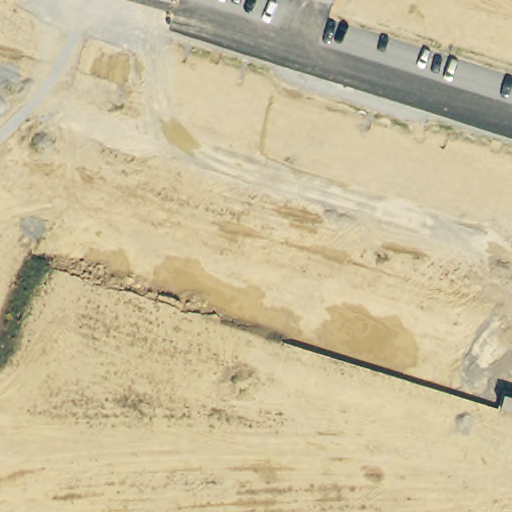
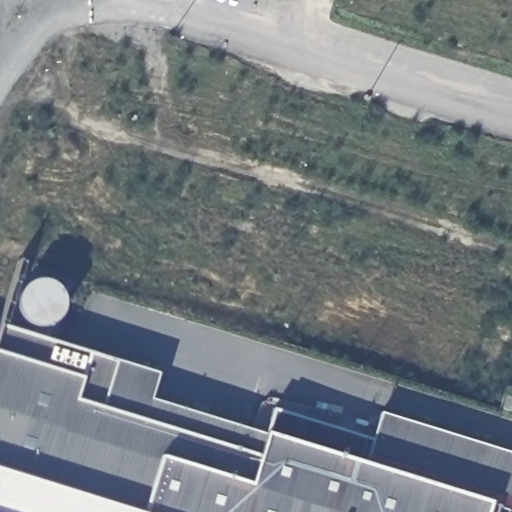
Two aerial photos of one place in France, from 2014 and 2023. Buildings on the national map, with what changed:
new [(31,337),(34,328),(30,327),(23,323),(17,315),(16,306),(17,296),(22,290),(29,285),(36,283),(49,285),(56,289),(61,299),(62,305),(61,314),(57,321),(48,327),(44,341),(157,377),(150,402),(263,437),(272,411),(370,442),(378,415),(512,457),(512,512),(501,512),(487,508),(486,512),(0,512),(0,328),(31,337)]

